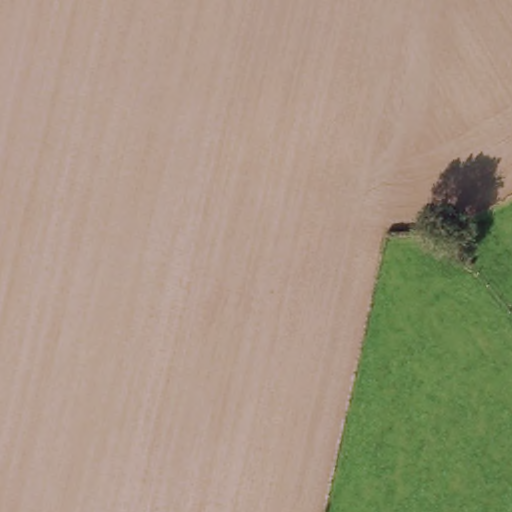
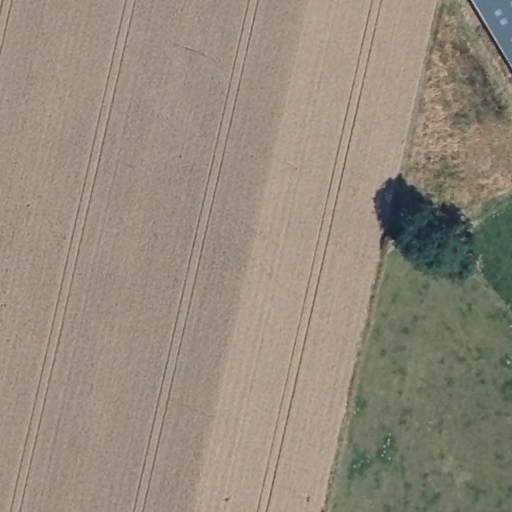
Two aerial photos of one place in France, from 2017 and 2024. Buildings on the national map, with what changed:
new [(478,0),(512,0),(512,57),(478,0)]

